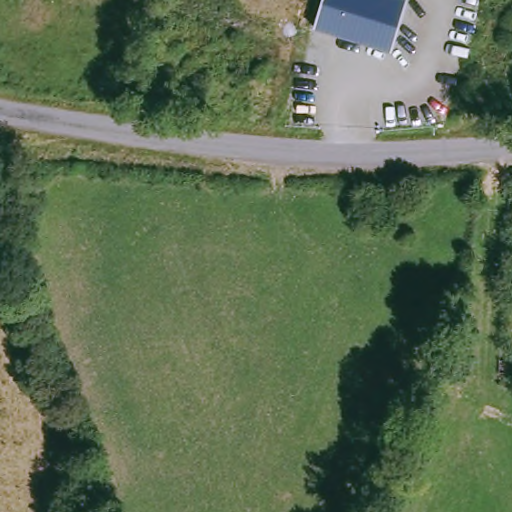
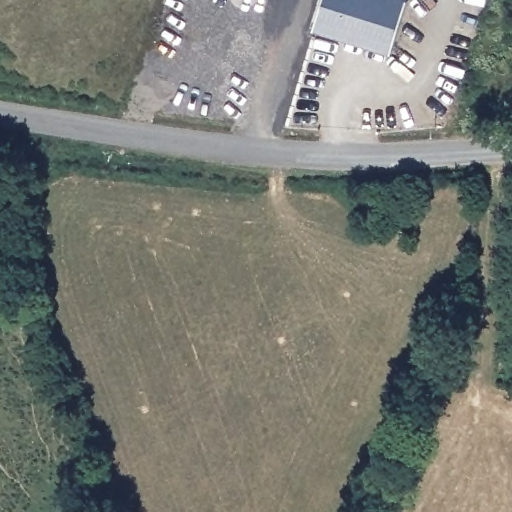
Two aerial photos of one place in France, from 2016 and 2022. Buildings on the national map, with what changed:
unchanged [(392,53),(315,28),(324,0),(408,0),(392,53)]

